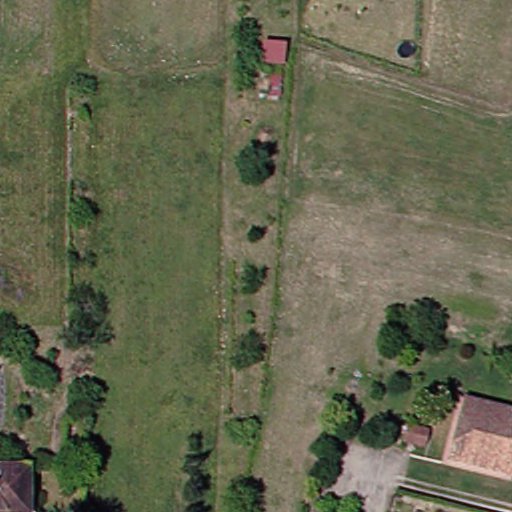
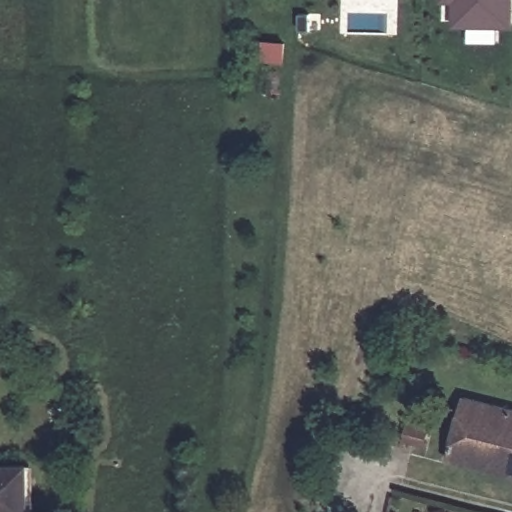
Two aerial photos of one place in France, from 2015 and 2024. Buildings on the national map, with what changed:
new [(512,30),(455,29),(455,5),(442,4),(442,0),(512,0),(512,30)]
unchanged [(287,50),(274,50),(273,39),(287,39),(287,50)]
unchanged [(465,395),(512,407),(512,460),(508,475),(449,460),(465,395)]
unchanged [(425,443),(406,438),(410,423),(428,428),(425,443)]
unchanged [(512,477),(508,475),(512,460),(512,477)]
unchanged [(32,512),(0,512),(0,466),(32,465),(32,512)]

